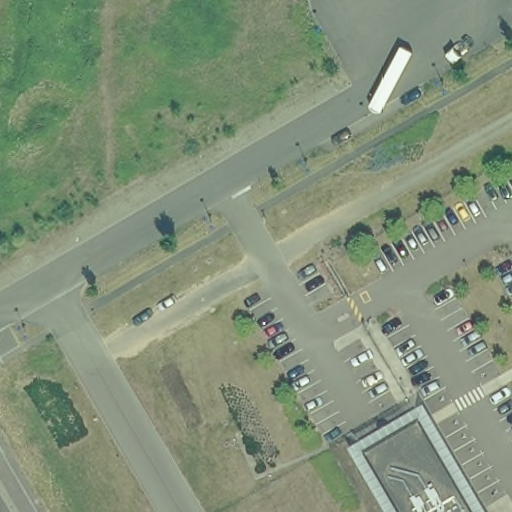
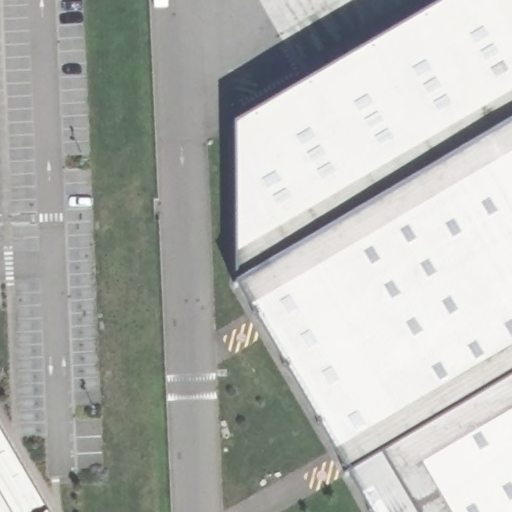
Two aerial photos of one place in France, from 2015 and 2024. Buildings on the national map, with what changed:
new [(512,67),(397,134),(350,56),(446,0),(495,0),(512,29),(512,67)]
new [(512,0),(512,29),(495,0),(512,0)]
new [(350,56),(397,134),(367,151),(364,153),(318,75),(350,56)]
new [(512,328),(397,134),(512,67),(512,328)]
new [(318,75),(364,153),(332,172),(286,94),(318,75)]
new [(286,94),(332,172),(237,227),(235,124),(286,94)]
new [(512,328),(512,394),(367,151),(397,134),(512,328)]
new [(367,151),(512,394),(512,452),(502,458),(332,172),(364,153),(367,151)]
new [(332,172),(502,458),(431,512),(370,512),(238,287),(237,227),(332,172)]
demolished [(347,457),(429,411),(488,512),(378,512),(347,457)]
new [(512,452),(512,482),(472,512),(431,512),(502,458),(512,452)]
new [(512,482),(512,512),(472,512),(512,482)]

